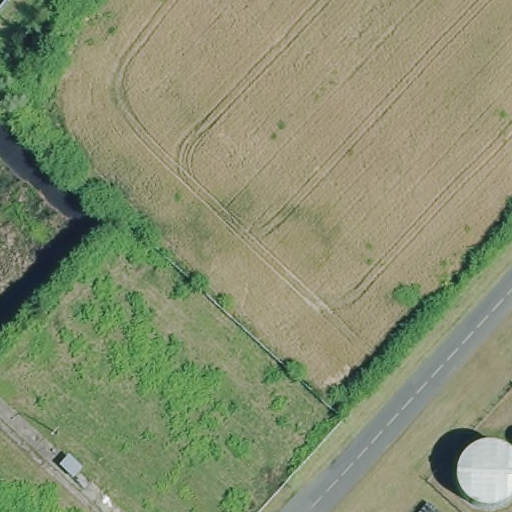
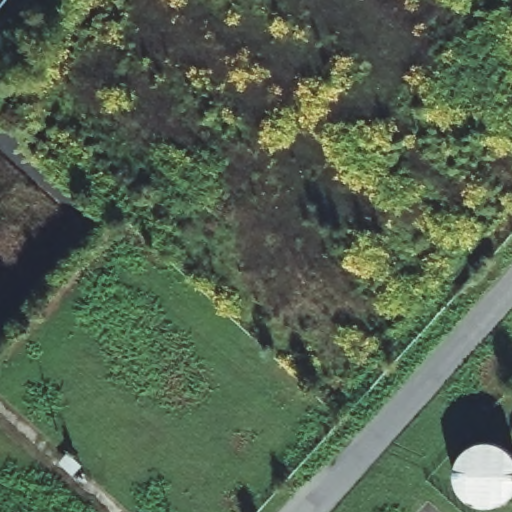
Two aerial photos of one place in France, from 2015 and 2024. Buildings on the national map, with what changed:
unchanged [(0,0),(8,0),(0,10),(0,0)]
unchanged [(512,440),(511,439),(511,437),(510,436),(511,435),(511,433),(512,432),(512,431),(512,441),(512,440)]
unchanged [(511,460),(512,462),(512,488),(510,491),(508,495),(506,498),(502,501),(500,503),(495,505),(492,507),(488,508),(483,508),(480,508),(475,508),(471,507),(467,505),(463,503),(460,501),(457,498),(454,495),(452,491),(450,488),(448,484),(448,480),(447,475),(447,471),(448,467),(450,463),(452,460),(453,456),(457,452),(460,450),(463,447),(467,445),(470,443),(475,442),(478,442),(483,442),(487,442),(491,443),(495,445),(498,446),(502,449),(505,452),(508,455),(510,458),(511,460)]
unchanged [(511,460),(510,458),(512,458),(512,462),(511,460)]

